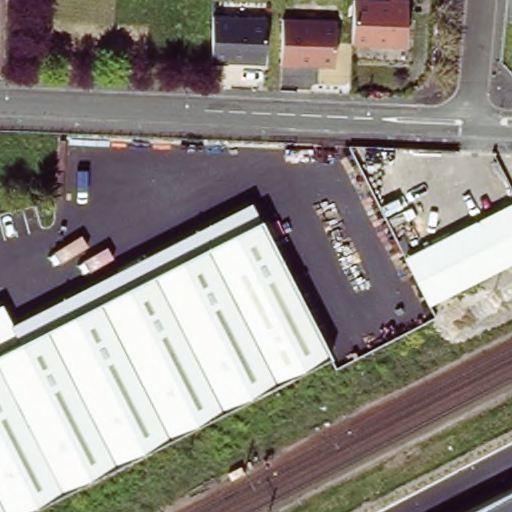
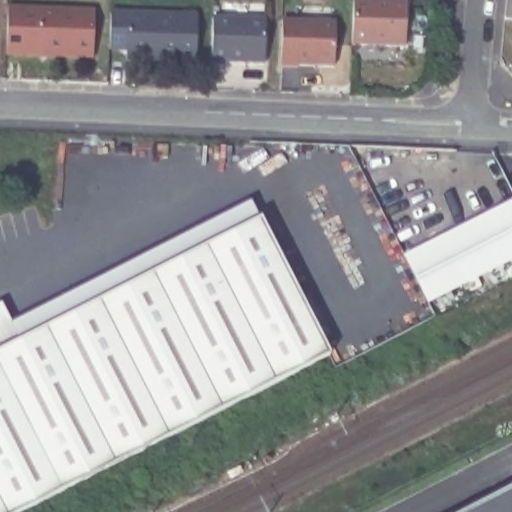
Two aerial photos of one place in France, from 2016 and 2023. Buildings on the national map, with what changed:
unchanged [(352,0),(406,0),(406,47),(352,45),(352,0)]
unchanged [(504,21),(506,0),(512,0),(512,21),(504,21)]
new [(6,7),(93,9),(91,56),(5,54),(6,7)]
new [(109,11),(196,14),(195,61),(124,59),(125,49),(108,49),(109,11)]
unchanged [(212,16),(266,17),(265,62),(212,61),(212,16)]
unchanged [(282,18),(336,19),(335,65),(281,63),(282,18)]
unchanged [(407,261),(512,207),(512,263),(428,306),(407,261)]
unchanged [(328,357),(26,512),(0,512),(0,308),(2,307),(21,342),(258,222),(328,357)]
unchanged [(463,512),(512,487),(512,512),(463,512)]

